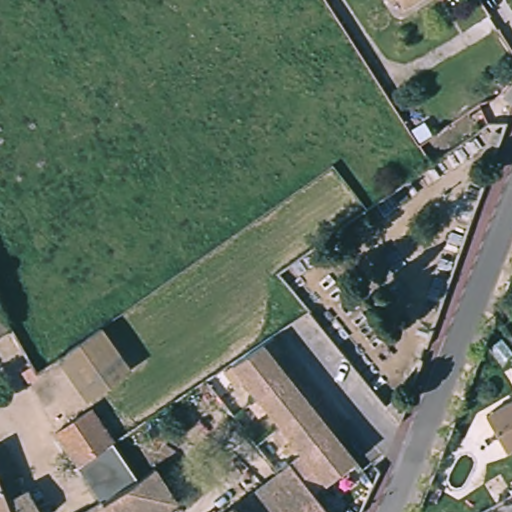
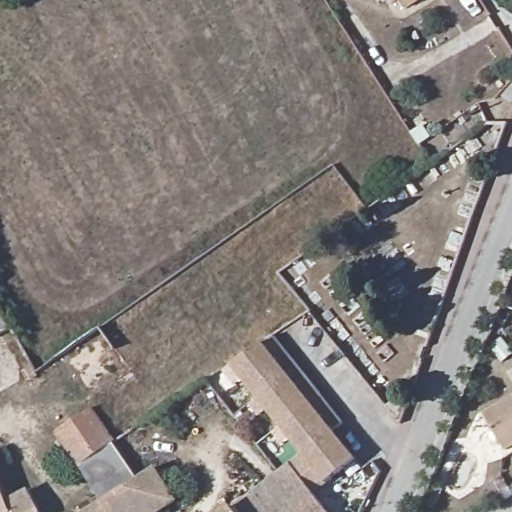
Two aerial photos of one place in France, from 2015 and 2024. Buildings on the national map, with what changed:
unchanged [(404,8),(399,0),(417,0),(404,8)]
unchanged [(503,100),(512,88),(512,105),(511,106),(503,100)]
unchanged [(0,334),(0,312),(10,330),(0,334)]
unchanged [(129,371),(87,402),(57,360),(99,330),(129,371)]
unchanged [(297,365),(257,397),(248,385),(231,364),(273,335),(297,365)]
unchanged [(297,365),(319,393),(280,425),(266,408),(257,397),(297,365)]
unchanged [(319,393),(343,423),(334,431),(330,434),(303,455),(289,437),(280,425),(319,393)]
unchanged [(488,411),(512,397),(512,445),(509,446),(488,411)]
unchanged [(386,406),(396,399),(405,410),(400,423),(386,406)]
unchanged [(57,432),(91,409),(114,442),(80,466),(57,432)]
unchanged [(330,434),(349,458),(310,490),(290,465),(303,455),(330,434)]
unchanged [(130,465),(139,478),(103,502),(80,466),(114,442),(130,465)]
unchanged [(279,473),(290,465),(310,490),(327,512),(237,512),(234,508),(279,473)]
unchanged [(103,502),(139,478),(155,468),(177,501),(160,512),(85,512),(99,505),(103,502)]
unchanged [(8,501),(28,490),(41,512),(0,512),(0,483),(8,501)]
unchanged [(234,508),(237,512),(227,512),(234,507),(234,508)]

